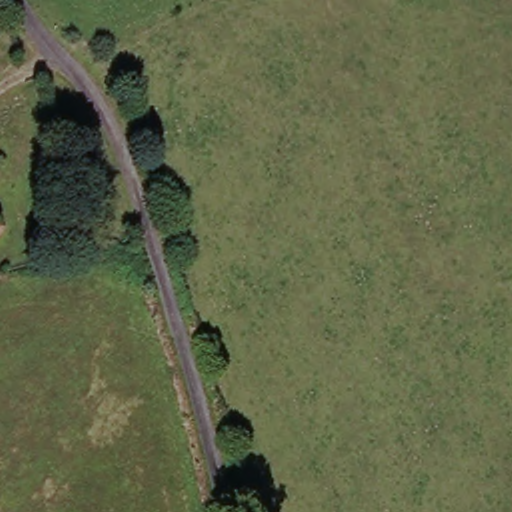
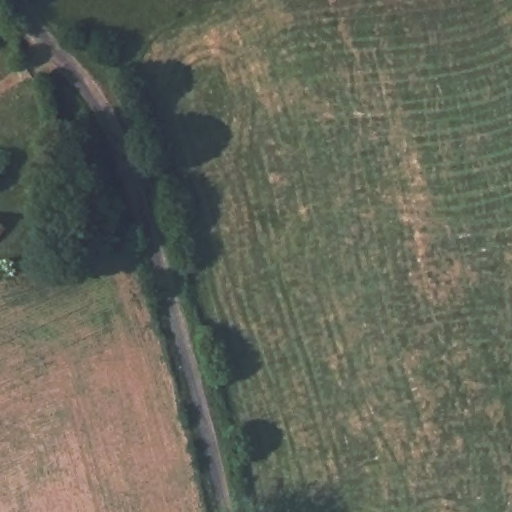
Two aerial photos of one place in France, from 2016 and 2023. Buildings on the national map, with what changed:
unchanged [(0,244),(0,232),(6,237),(0,244)]

